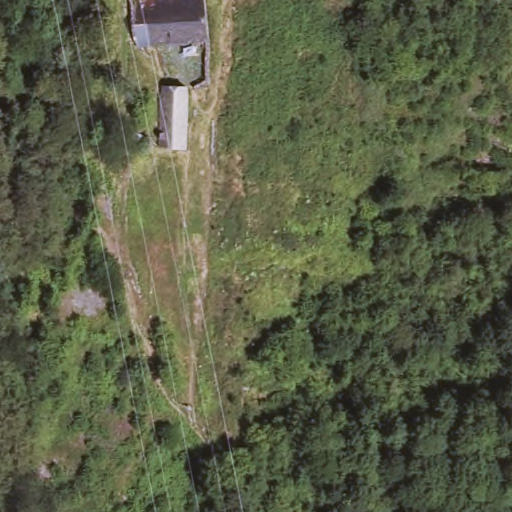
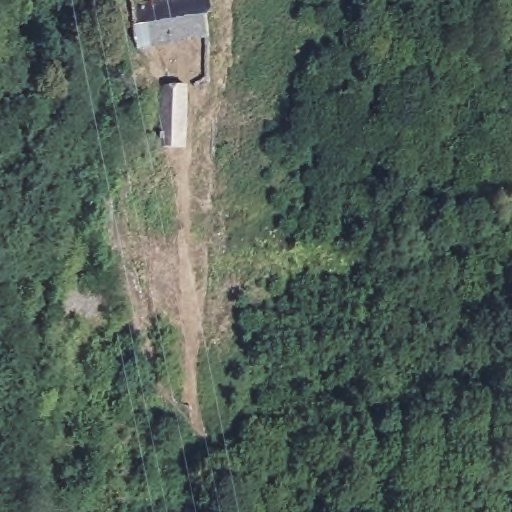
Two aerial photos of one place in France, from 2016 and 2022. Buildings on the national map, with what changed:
unchanged [(156,11),(156,0),(196,0),(198,15),(200,42),(129,48),(126,14),(156,11)]
unchanged [(181,84),(179,113),(178,146),(151,145),(154,82),(181,84)]

